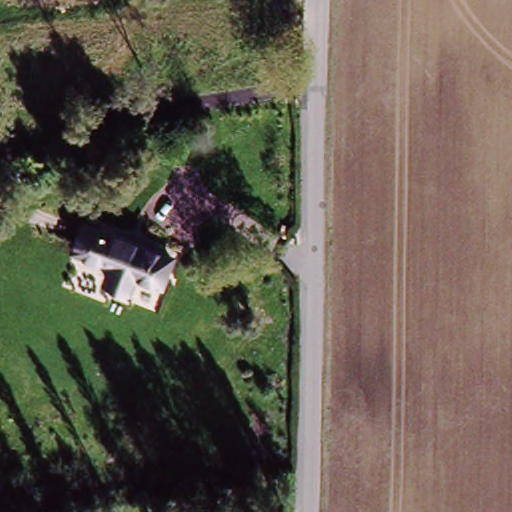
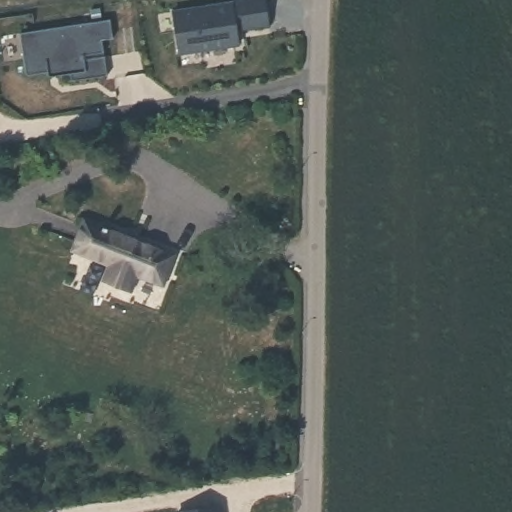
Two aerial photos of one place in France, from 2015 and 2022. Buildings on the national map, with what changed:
demolished [(85,7),(85,0),(112,0),(111,10),(85,7)]
new [(253,3),(257,30),(225,35),(228,49),(178,53),(171,13),(253,3)]
new [(108,19),(110,38),(90,41),(93,53),(112,50),(113,54),(102,55),(106,75),(70,80),(69,73),(47,77),(46,71),(25,75),(18,33),(108,19)]
unchanged [(142,271),(137,286),(112,278),(117,262),(78,249),(88,220),(176,251),(167,280),(142,271)]

